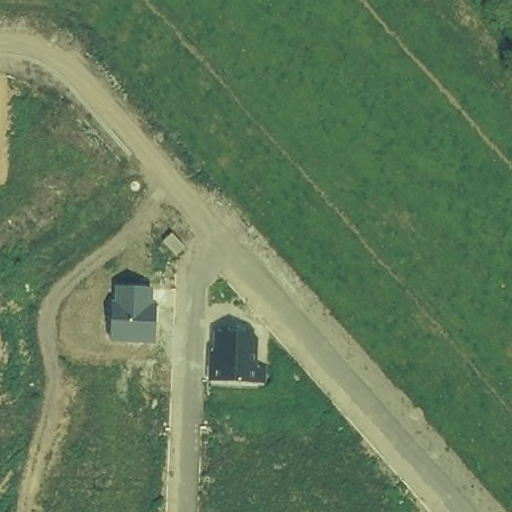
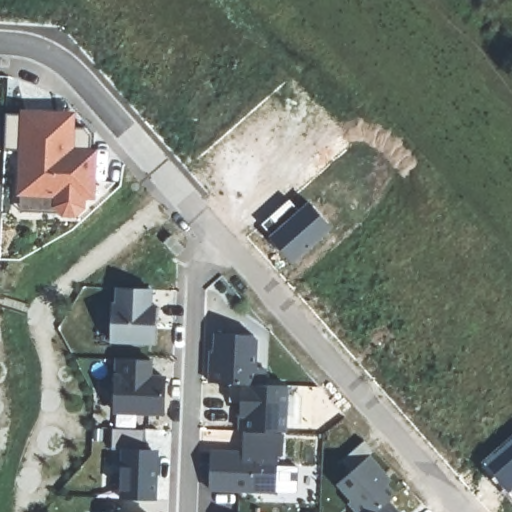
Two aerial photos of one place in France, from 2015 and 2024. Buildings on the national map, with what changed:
new [(22,111),(22,108),(76,110),(77,126),(81,126),(90,135),(89,146),(98,147),(95,199),(85,199),(84,207),(77,216),(62,215),(56,211),(17,210),(20,194),(16,194),(18,149),(6,149),(7,112),(22,111)]
new [(332,232),(290,267),(268,238),(269,237),(260,226),(290,200),(302,210),(309,203),(332,232)]
unchanged [(151,287),(150,304),(157,304),(155,343),(110,343),(110,302),(115,302),(115,286),(151,287)]
unchanged [(257,332),(256,365),(266,366),(265,384),(256,384),(208,382),(208,347),(214,347),(213,330),(257,332)]
new [(118,357),(151,358),(150,375),(117,374),(118,357)]
unchanged [(115,374),(165,376),(165,411),(115,409),(115,374)]
new [(287,381),(285,429),(282,453),(279,452),(277,491),(210,490),(210,451),(242,451),(243,431),(239,430),(242,383),(256,384),(265,384),(265,380),(287,381)]
new [(145,430),(144,447),(162,448),(160,496),(118,496),(121,448),(112,448),(114,429),(145,430)]
new [(342,460),(363,441),(373,453),(372,454),(393,481),(389,485),(397,495),(377,512),(356,512),(348,502),(350,500),(336,484),(350,470),(342,460)]
new [(492,474),(512,459),(512,495),(492,474)]
new [(377,512),(389,502),(398,512),(377,512)]
new [(105,512),(105,511),(120,512),(105,512)]

